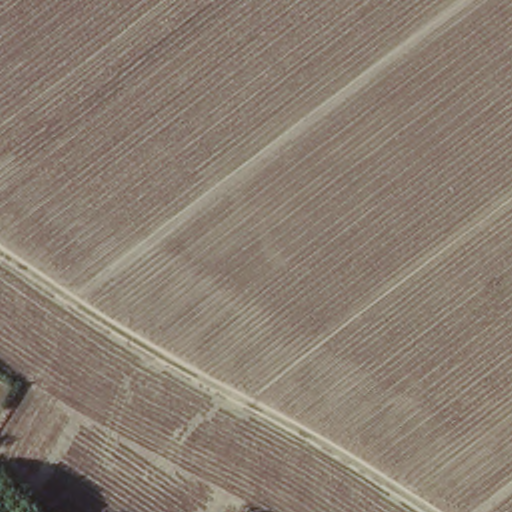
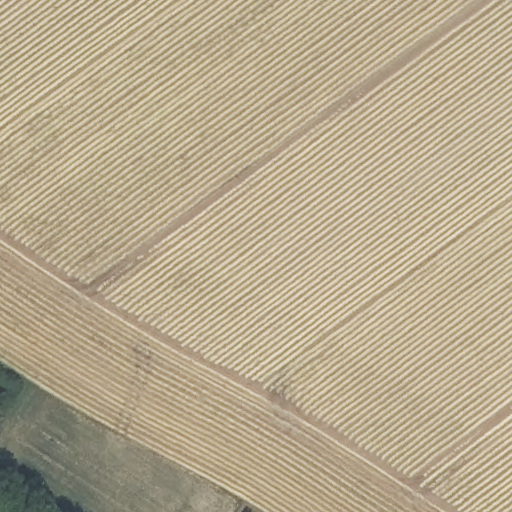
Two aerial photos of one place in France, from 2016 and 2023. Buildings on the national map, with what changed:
[]

